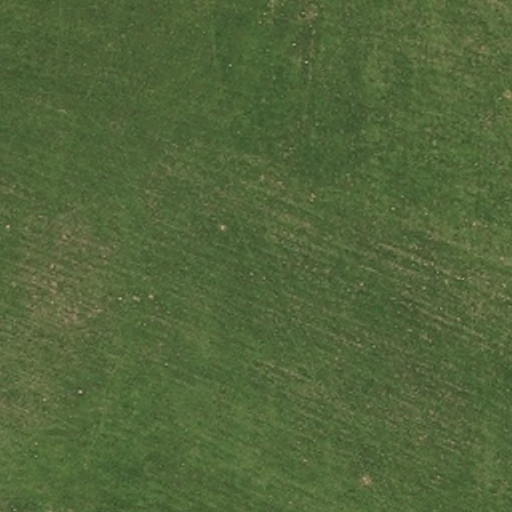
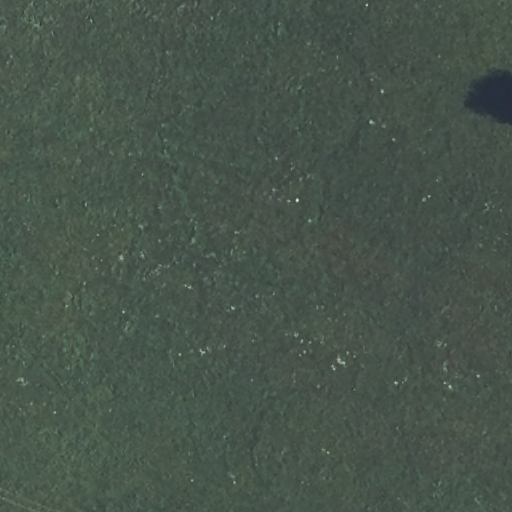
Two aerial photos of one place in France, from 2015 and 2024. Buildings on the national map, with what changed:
[]

